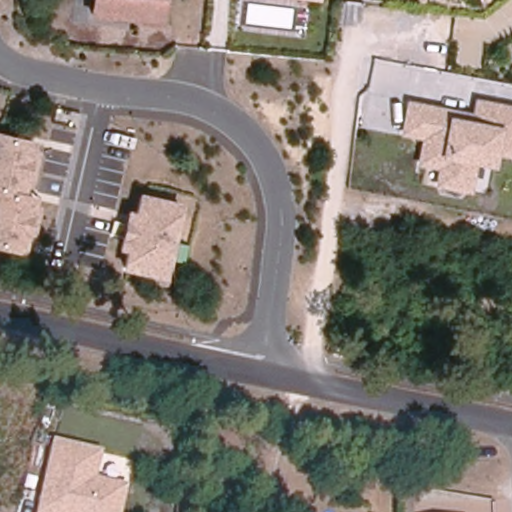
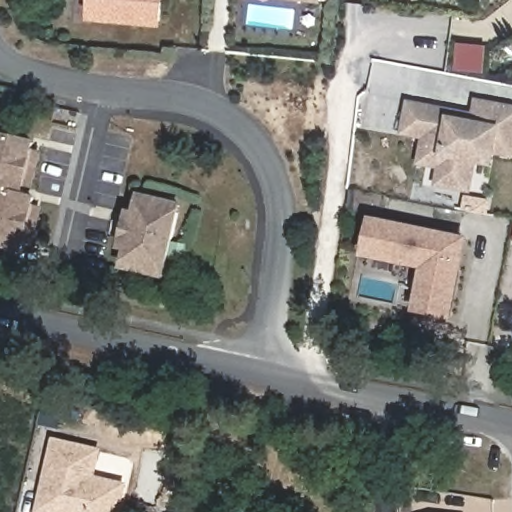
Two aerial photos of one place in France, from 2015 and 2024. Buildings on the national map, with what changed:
unchanged [(93,17),(94,0),(166,0),(164,23),(93,17)]
unchanged [(304,0),(322,0),(321,2),(304,0)]
unchanged [(512,156),(498,153),(496,169),(476,165),(471,194),(438,187),(439,170),(420,166),(423,142),(402,137),(408,102),(456,110),(455,119),(471,121),(477,100),(512,107),(512,156)]
unchanged [(24,192),(39,195),(25,254),(0,249),(0,133),(36,140),(24,192)]
unchanged [(168,281),(122,271),(126,253),(118,251),(125,209),(135,211),(139,192),(184,202),(168,281)]
new [(370,252),(376,222),(460,238),(466,239),(460,270),(452,312),(433,309),(420,307),(429,265),(370,252)]
unchanged [(104,451),(97,477),(129,485),(122,512),(38,512),(56,439),(104,451)]

